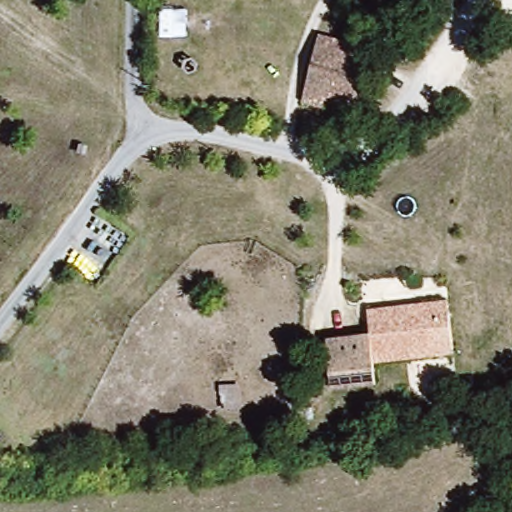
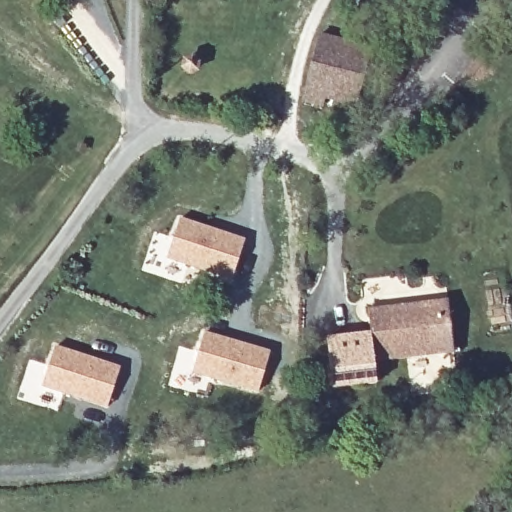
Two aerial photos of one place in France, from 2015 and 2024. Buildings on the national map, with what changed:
unchanged [(442,0),(437,12),(412,2),(413,0),(442,0)]
unchanged [(298,101),(302,89),(317,39),(370,53),(353,109),(319,100),(317,106),(298,101)]
new [(236,276),(170,257),(181,219),(247,236),(236,276)]
unchanged [(371,323),(371,307),(448,298),(450,312),(371,323)]
unchanged [(454,356),(375,368),(377,388),(334,394),(328,345),(373,338),(371,323),(450,312),(454,356)]
new [(263,390),(196,374),(206,335),(272,351),(263,390)]
new [(111,409),(45,391),(55,351),(122,370),(111,409)]

